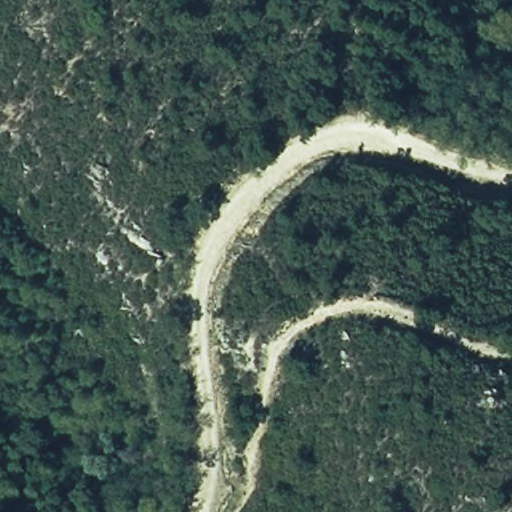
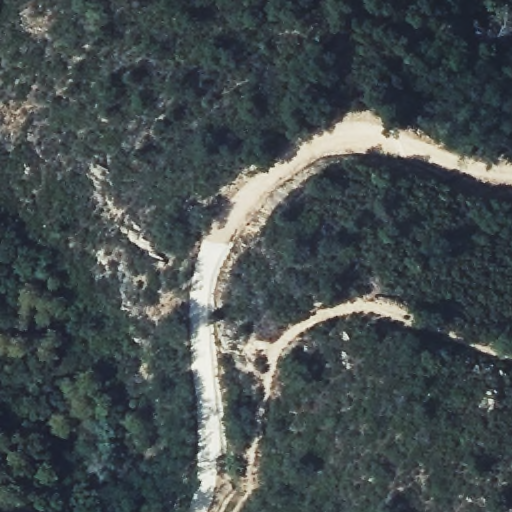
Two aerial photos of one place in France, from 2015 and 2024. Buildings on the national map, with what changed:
[]

